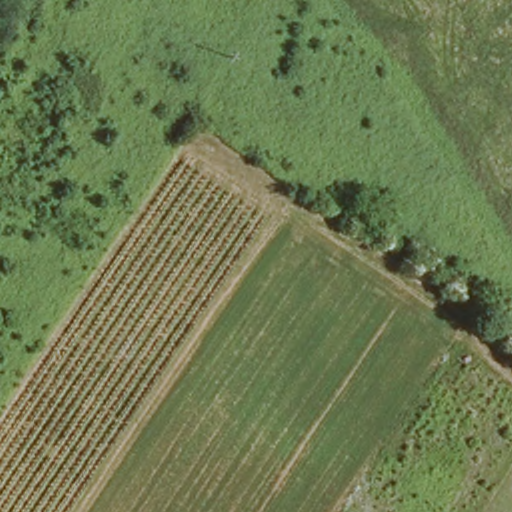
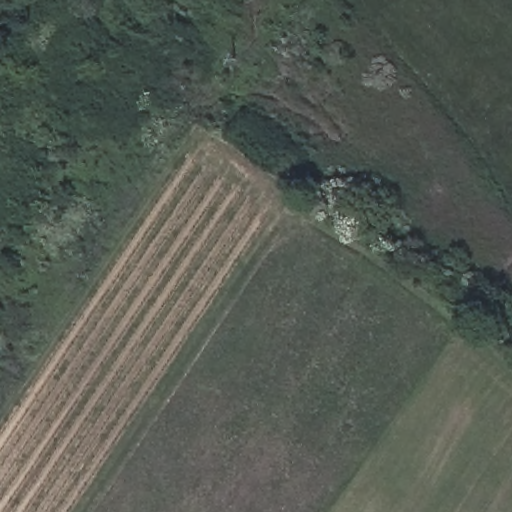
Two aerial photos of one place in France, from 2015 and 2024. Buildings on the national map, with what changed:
[]

